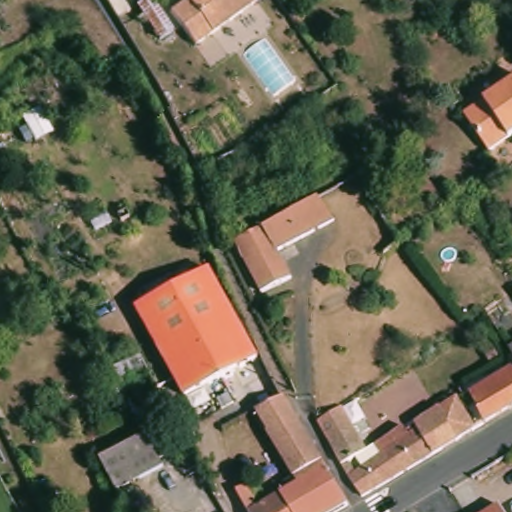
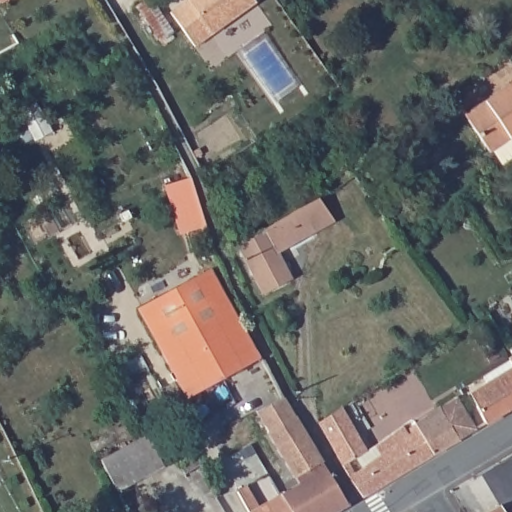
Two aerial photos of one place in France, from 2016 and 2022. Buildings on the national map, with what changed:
unchanged [(187,0),(253,0),(256,4),(195,46),(170,10),(187,0)]
unchanged [(512,142),(490,157),(464,120),(512,88),(512,142)]
new [(191,178),(198,194),(207,227),(180,235),(165,185),(191,178)]
unchanged [(334,225),(277,256),(291,285),(263,299),(237,247),(262,235),(263,235),(318,204),(334,225)]
unchanged [(365,230),(383,216),(392,229),(402,243),(384,256),(365,230)]
unchanged [(187,403),(138,313),(209,275),(258,365),(187,403)]
unchanged [(492,323),(483,310),(496,301),(505,315),(492,323)]
unchanged [(512,353),(512,359),(510,355),(512,353)]
unchanged [(512,371),(512,378),(508,380),(505,375),(512,371)]
unchanged [(490,402),(507,392),(504,387),(512,382),(512,412),(486,428),(473,407),(487,398),(490,402)]
unchanged [(316,492),(298,488),(256,416),(283,402),(322,467),(328,478),(316,492)]
unchanged [(366,456),(375,451),(402,431),(406,436),(440,413),(458,445),(433,459),(362,501),(342,470),(317,428),(326,423),(342,413),(366,456)]
unchanged [(152,440),(169,470),(122,496),(106,465),(149,441),(152,440)]
unchanged [(290,512),(282,498),(298,488),(316,492),(328,478),(347,510),(345,512),(290,512)]
unchanged [(258,512),(246,512),(237,496),(247,491),(258,512)]
unchanged [(290,512),(258,512),(282,498),(290,512)]
unchanged [(509,512),(482,512),(502,500),(509,512)]

